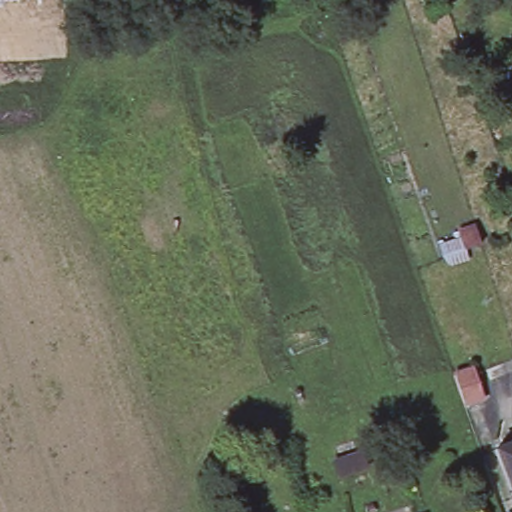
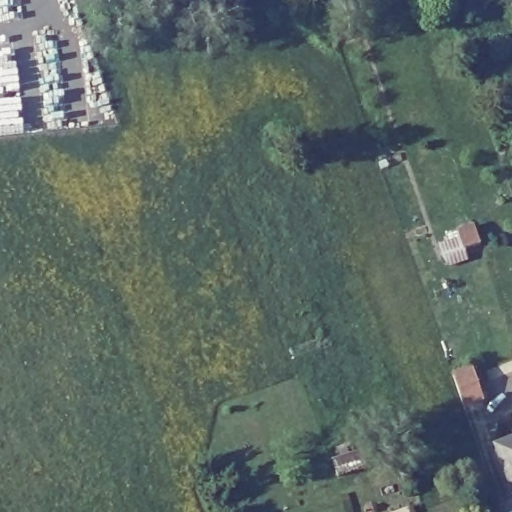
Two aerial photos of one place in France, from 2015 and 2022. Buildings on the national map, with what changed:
unchanged [(475,224),(481,242),(465,248),(459,230),(475,224)]
unchanged [(472,367),(482,397),(465,403),(454,373),(472,367)]
unchanged [(498,455),(512,450),(512,495),(498,455)]

